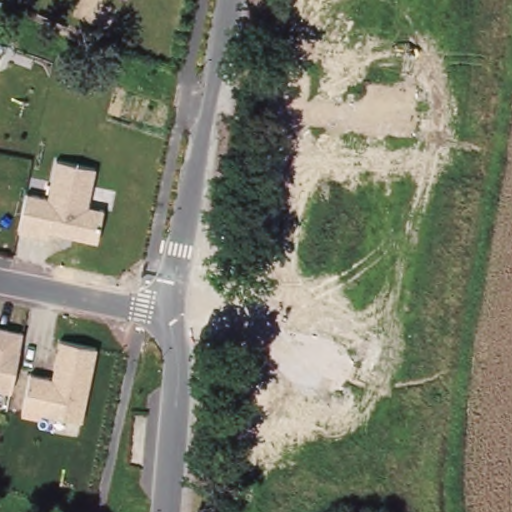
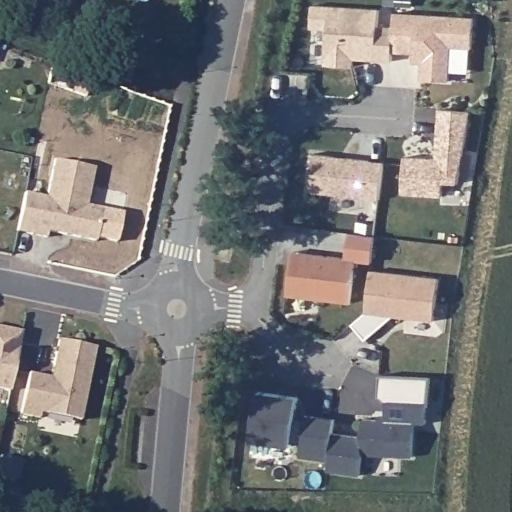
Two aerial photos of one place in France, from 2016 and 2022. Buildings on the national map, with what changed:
new [(315,6),(382,10),(381,27),(397,28),(395,52),(395,61),(356,59),(356,67),(328,65),(330,29),(314,28),(315,6)]
new [(397,28),(398,13),(476,18),(475,48),(454,47),(451,81),(424,79),(425,54),(395,52),(397,28)]
new [(407,157),(439,159),(442,109),(473,111),(461,183),(446,182),(445,196),(405,194),(407,157)]
new [(315,154),(386,162),(382,200),(310,191),(315,154)]
unchanged [(96,169),(87,207),(106,211),(100,240),(54,232),(52,239),(20,232),(26,191),(50,196),(56,161),(96,169)]
new [(295,252),(301,252),(349,258),(352,233),(378,236),(375,262),(358,260),(353,302),(290,295),(293,264),(295,252)]
new [(369,312),(373,270),(442,278),(437,320),(396,315),(368,340),(355,324),(369,312)]
unchanged [(12,390),(0,387),(0,326),(25,331),(13,389),(12,390)]
unchanged [(30,372),(51,377),(59,340),(97,347),(82,420),(41,413),(40,418),(21,414),(30,372)]
new [(296,442),(295,446),(255,441),(262,391),(301,397),(298,420),(308,421),(309,415),(337,419),(336,433),(363,436),(366,419),(388,420),(390,401),(382,396),(383,375),(433,377),(429,423),(417,422),(415,456),(366,454),(363,475),(331,470),(332,460),(303,456),(305,445),(305,444),(296,442)]

